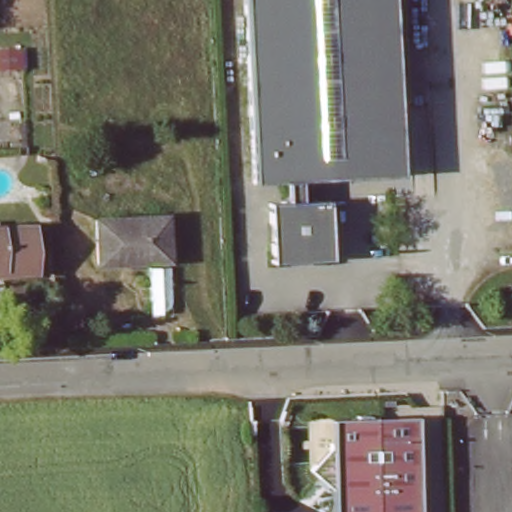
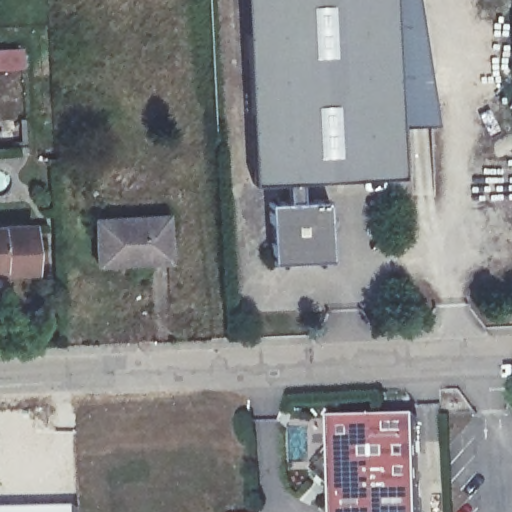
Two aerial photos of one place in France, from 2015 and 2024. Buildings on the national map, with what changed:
unchanged [(250,181),(239,0),(392,0),(402,173),(250,181)]
unchanged [(328,201),(330,220),(323,223),(322,239),(330,241),(331,258),(328,260),(310,261),(307,256),(289,256),(289,263),(271,263),(269,243),(274,239),(273,224),(268,222),(266,204),(328,201)]
unchanged [(168,262),(98,262),(98,214),(166,214),(168,262)]
unchanged [(37,272),(3,273),(0,274),(0,225),(35,225),(37,272)]
unchanged [(354,416),(366,405),(373,415),(416,416),(418,475),(419,512),(333,512),(331,485),(309,459),(330,438),(329,415),(354,416)]
new [(72,512),(0,512),(0,506),(71,505),(72,512)]

